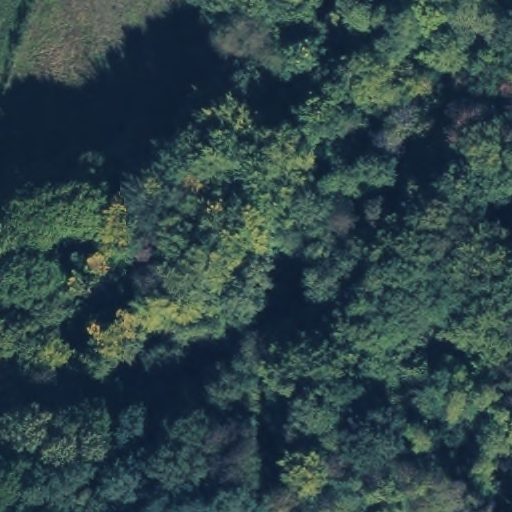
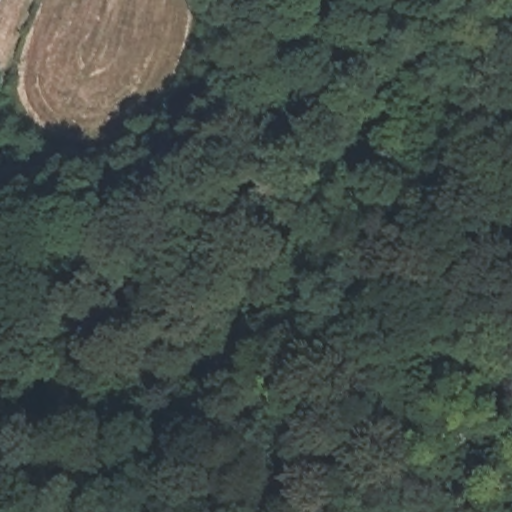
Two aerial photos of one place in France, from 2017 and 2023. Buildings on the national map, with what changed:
[]

